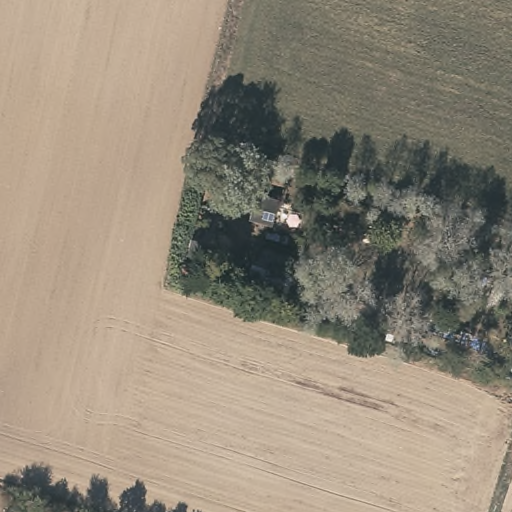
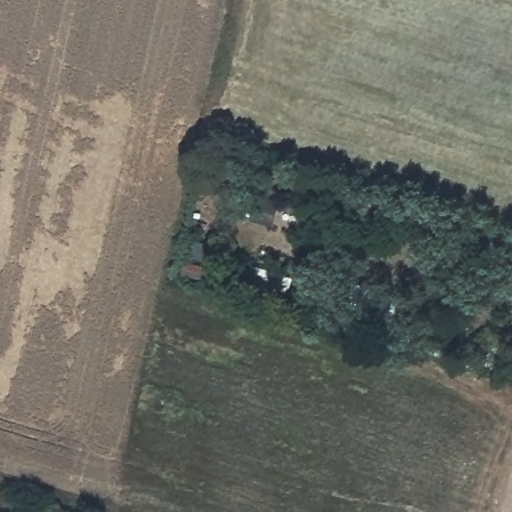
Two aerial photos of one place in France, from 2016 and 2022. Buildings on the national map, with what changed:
unchanged [(269,196),(265,219),(239,214),(243,191),(269,196)]
unchanged [(214,263),(210,275),(181,270),(184,257),(214,263)]

